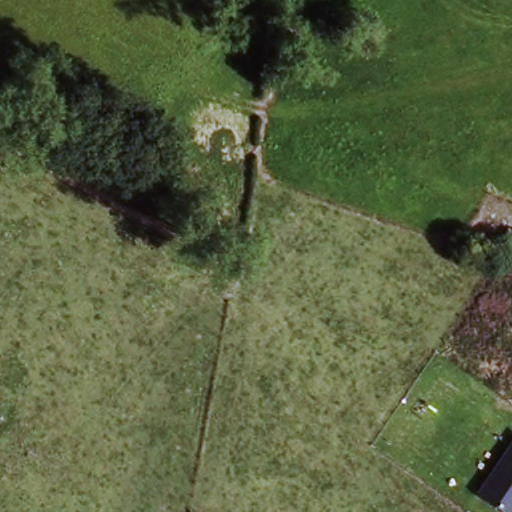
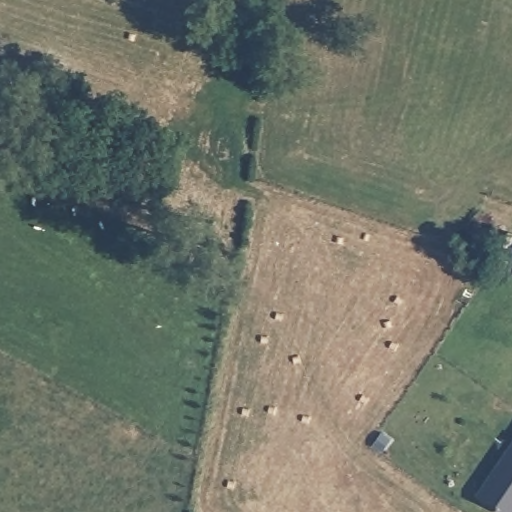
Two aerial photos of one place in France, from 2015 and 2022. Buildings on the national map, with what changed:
unchanged [(512,236),(512,260),(498,256),(505,234),(512,236)]
unchanged [(500,512),(479,498),(512,448),(512,512),(500,512)]

